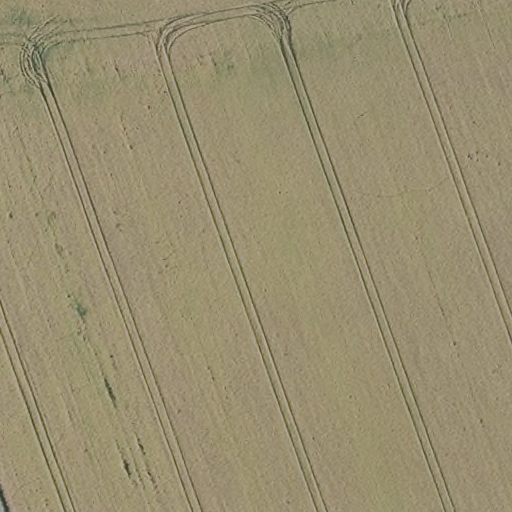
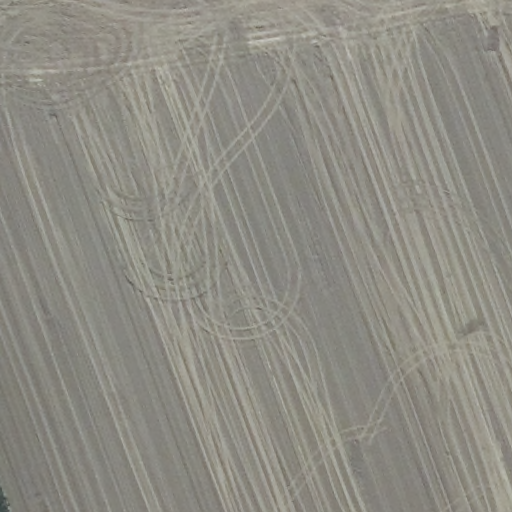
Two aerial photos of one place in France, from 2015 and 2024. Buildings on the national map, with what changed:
[]

